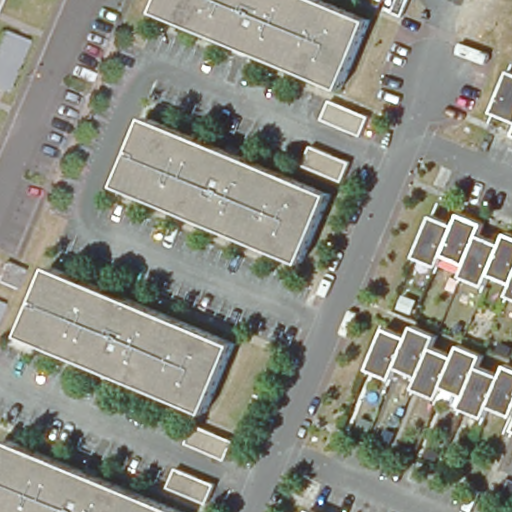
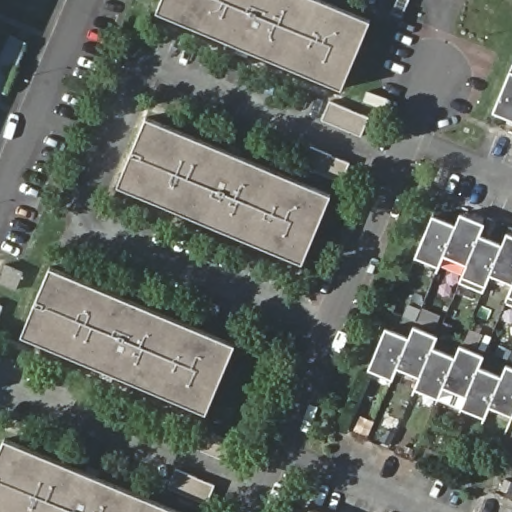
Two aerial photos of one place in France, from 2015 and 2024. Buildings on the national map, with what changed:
unchanged [(374,16),(346,85),(161,11),(157,10),(161,0),(333,0),(374,16)]
unchanged [(24,41),(3,91),(0,90),(0,31),(24,41)]
unchanged [(507,73),(512,75),(512,117),(492,109),(507,73)]
unchanged [(330,100),(370,115),(362,135),(322,119),(330,100)]
unchanged [(330,192),(303,261),(114,186),(141,117),(330,192)]
unchanged [(351,160),(343,179),(305,164),(312,145),(351,160)]
unchanged [(486,278),(462,268),(467,256),(445,247),(440,258),(415,248),(430,212),(455,223),(460,211),(482,220),(477,232),(501,242),(506,231),(512,233),(512,276),(491,266),(486,278)]
unchanged [(14,291),(9,289),(0,286),(0,265),(16,272),(21,274),(14,291)]
unchanged [(49,267),(234,340),(206,409),(20,335),(16,334),(45,265),(49,267)]
unchanged [(512,279),(512,289),(508,287),(512,279)]
unchanged [(2,306),(0,311),(0,306),(2,306)]
unchanged [(440,388),(435,400),(410,390),(415,378),(393,369),(388,381),(364,371),(379,335),(403,345),(407,333),(430,342),(425,354),(450,364),(454,352),(476,362),(471,373),(496,383),(500,372),(512,377),(512,410),(509,417),(486,408),(481,419),(457,409),(461,398),(440,388)]
unchanged [(194,424),(233,440),(225,459),(186,443),(194,424)]
unchanged [(512,425),(512,433),(510,431),(512,425)]
unchanged [(0,512),(0,439),(184,512),(0,512)]
unchanged [(212,482),(205,501),(165,486),(172,467),(212,482)]

